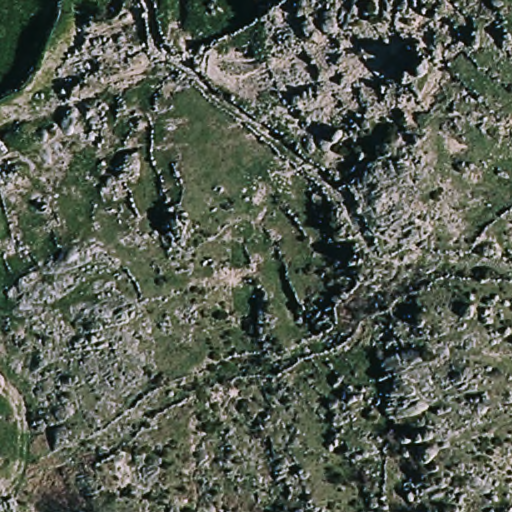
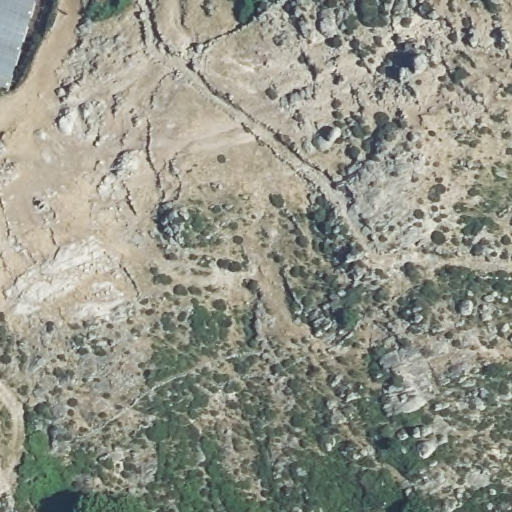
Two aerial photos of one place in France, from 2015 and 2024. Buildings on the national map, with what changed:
new [(37,0),(9,90),(0,88),(0,0),(37,0)]
unchanged [(7,151),(0,157),(0,143),(7,151)]

